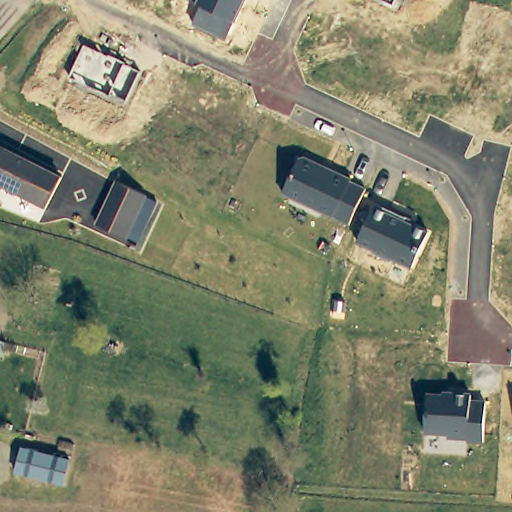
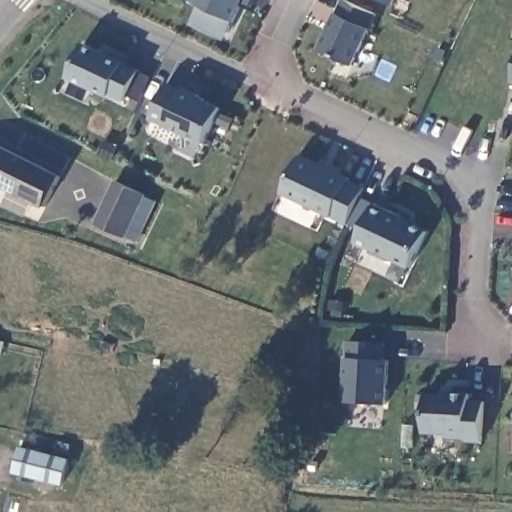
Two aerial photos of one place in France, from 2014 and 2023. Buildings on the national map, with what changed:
unchanged [(225,40),(192,24),(202,5),(195,2),(190,0),(245,0),(234,21),(225,40)]
new [(355,67),(318,50),(336,13),(341,0),(348,0),(378,15),(373,29),(355,67)]
unchanged [(385,0),(394,0),(392,4),(385,0)]
unchanged [(84,45),(141,72),(126,101),(111,94),(110,96),(70,77),(84,45)]
new [(203,145),(150,120),(168,82),(182,87),(183,87),(200,94),(198,98),(222,107),(203,145)]
unchanged [(36,203),(0,185),(0,147),(49,172),(36,203)]
unchanged [(298,157),(306,157),(351,179),(366,188),(347,225),(331,217),(281,194),(298,157)]
unchanged [(92,227),(116,180),(144,192),(122,240),(92,227)]
unchanged [(375,206),(429,231),(410,267),(357,242),(375,206)]
new [(344,402),(345,357),(346,341),(385,343),(387,361),(390,361),(388,404),(344,402)]
unchanged [(427,393),(442,393),(443,390),(471,392),(471,400),(485,400),(484,445),(467,444),(467,439),(447,438),(448,434),(425,433),(427,393)]
unchanged [(12,475),(17,447),(69,457),(65,485),(12,475)]

